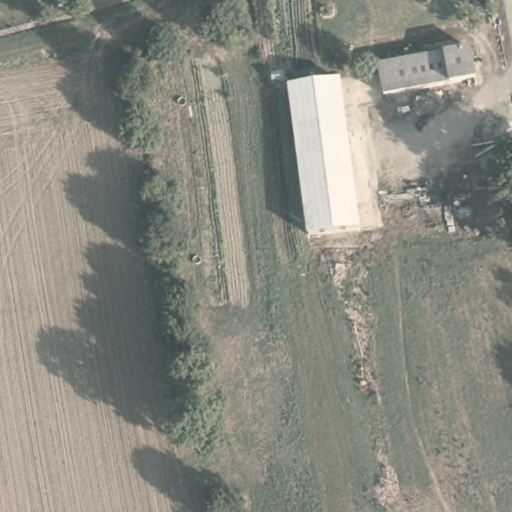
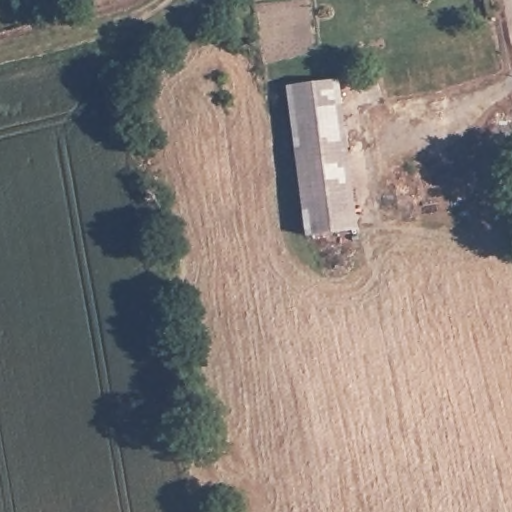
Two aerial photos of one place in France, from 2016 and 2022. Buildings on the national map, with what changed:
demolished [(466,44),(474,75),(385,95),(377,63),(466,44)]
unchanged [(326,81),(346,219),(311,225),(288,87),(326,81)]

